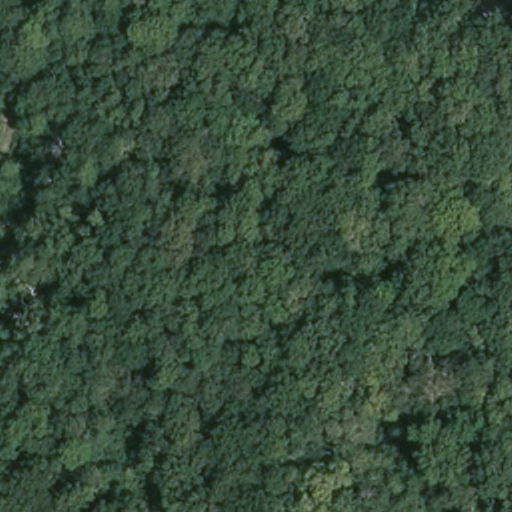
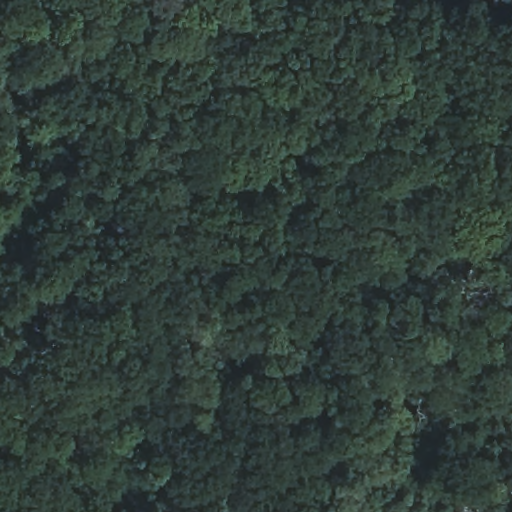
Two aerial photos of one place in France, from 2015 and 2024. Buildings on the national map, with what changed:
unchanged [(2,1),(3,0),(32,0),(28,14),(2,1)]

